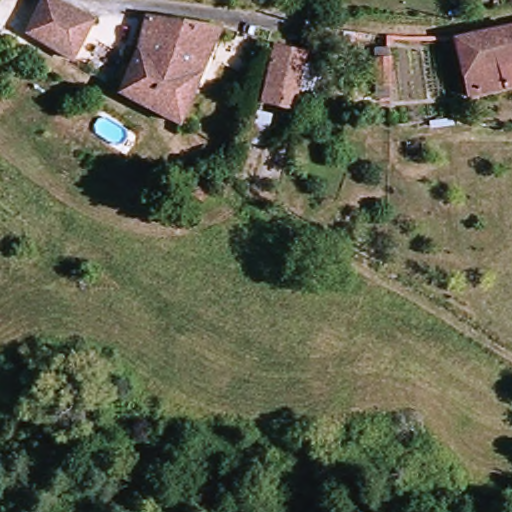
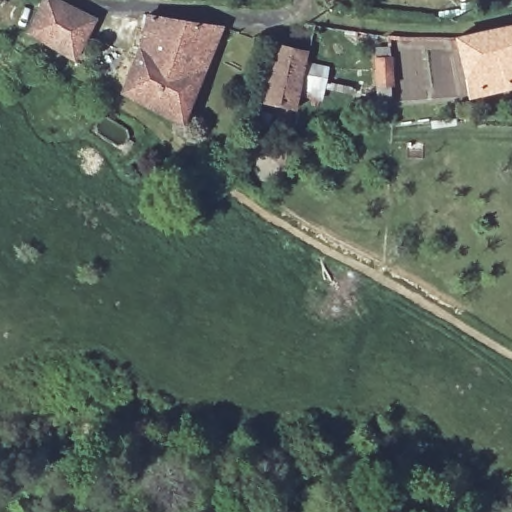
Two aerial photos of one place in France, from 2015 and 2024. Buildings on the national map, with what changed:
unchanged [(31,30),(47,0),(53,0),(100,14),(77,59),(31,30)]
unchanged [(179,126),(119,93),(152,15),(222,27),(179,126)]
unchanged [(457,44),(512,32),(512,90),(470,101),(457,44)]
unchanged [(307,51),(297,107),(268,102),(278,46),(307,51)]
unchanged [(375,60),(389,59),(392,85),(378,85),(375,60)]
unchanged [(192,168),(213,183),(203,198),(181,185),(192,168)]

